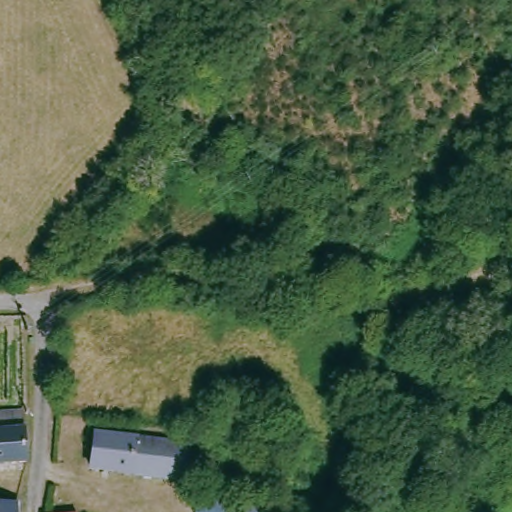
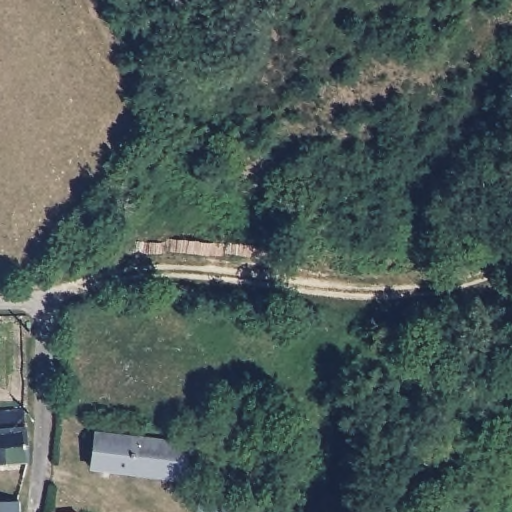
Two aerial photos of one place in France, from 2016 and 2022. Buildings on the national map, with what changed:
unchanged [(22,465),(0,467),(0,424),(21,423),(22,465)]
unchanged [(185,443),(181,478),(83,470),(86,434),(185,443)]
unchanged [(253,512),(193,512),(197,493),(253,509),(253,512)]
unchanged [(14,501),(15,512),(0,512),(0,501),(14,501)]

